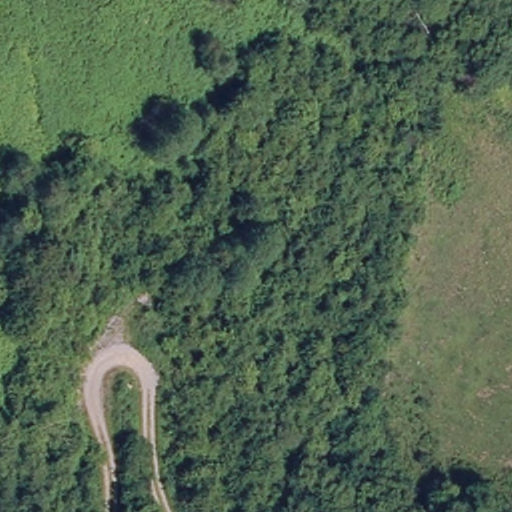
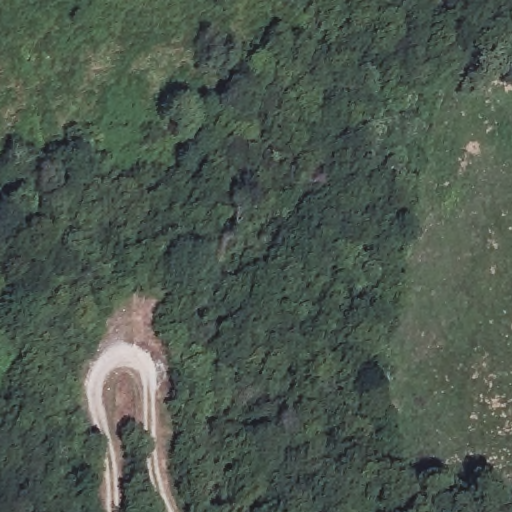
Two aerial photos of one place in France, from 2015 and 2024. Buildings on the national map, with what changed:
[]

